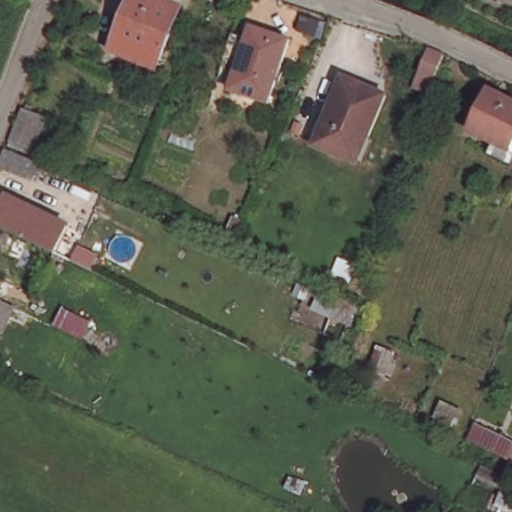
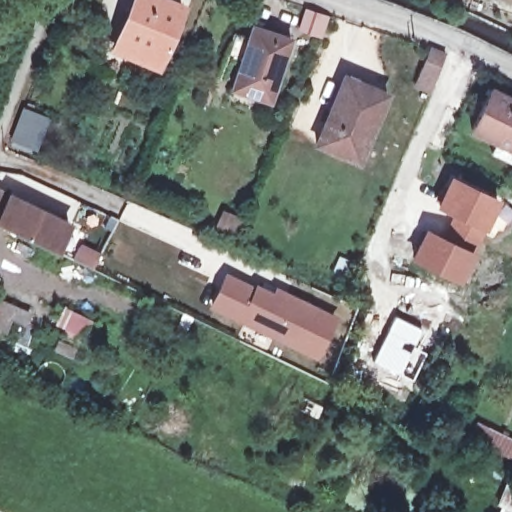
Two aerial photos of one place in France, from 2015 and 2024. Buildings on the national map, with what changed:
unchanged [(182,6),(160,57),(118,40),(136,0),(171,0),(182,6)]
unchanged [(252,27),(290,40),(270,100),(230,88),(252,27)]
unchanged [(447,56),(435,85),(419,79),(419,78),(431,49),(447,56)]
unchanged [(340,80),(387,100),(360,164),(313,145),(340,80)]
unchanged [(495,144),(466,131),(485,89),(512,101),(512,163),(490,154),(495,144)]
unchanged [(43,118),(32,145),(12,137),(23,110),(43,118)]
unchanged [(21,152),(15,166),(2,160),(7,147),(21,152)]
new [(450,175),(499,198),(475,252),(442,236),(452,215),(435,208),(450,175)]
unchanged [(74,224),(62,251),(0,222),(0,187),(74,224)]
new [(425,227),(442,236),(475,252),(459,284),(410,261),(425,227)]
new [(280,296),(282,290),(292,294),(341,318),(323,355),(219,306),(232,277),(261,291),(262,288),(289,300),(280,296)]
unchanged [(396,349),(385,374),(369,367),(380,342),(396,349)]
unchanged [(512,451),(510,457),(475,442),(482,426),(512,439),(512,451)]

